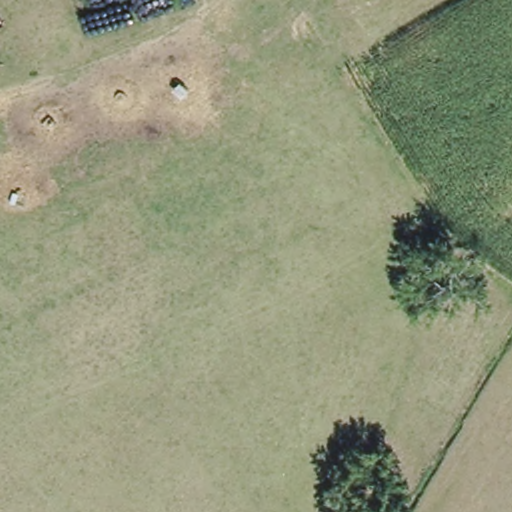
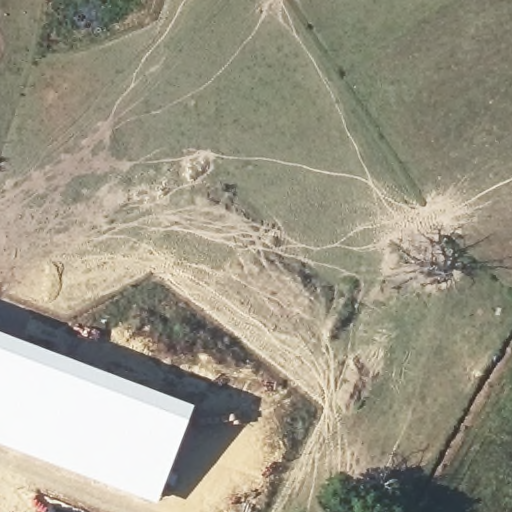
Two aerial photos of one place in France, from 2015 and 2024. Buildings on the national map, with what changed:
new [(195,404),(157,503),(0,444),(0,330),(195,404)]

